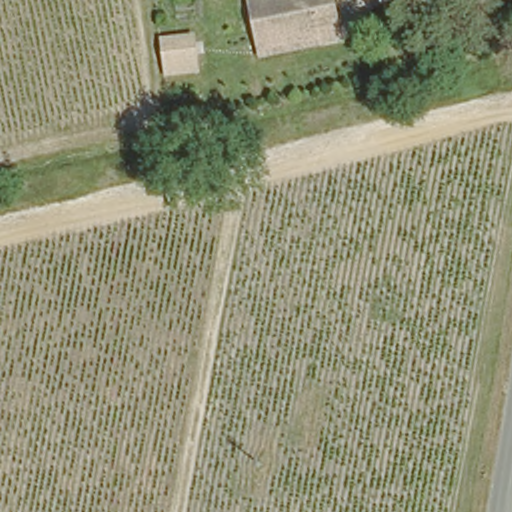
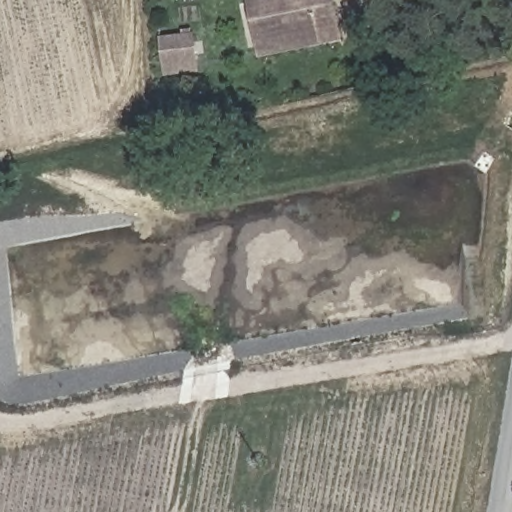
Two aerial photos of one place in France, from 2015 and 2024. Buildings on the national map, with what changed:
unchanged [(265,50),(253,6),(277,0),(334,0),(336,6),(342,30),(327,34),(265,50)]
unchanged [(161,73),(161,64),(158,40),(192,36),(195,60),(196,69),(161,73)]

